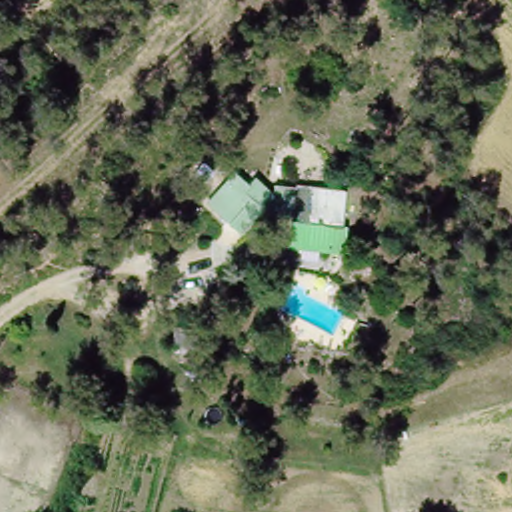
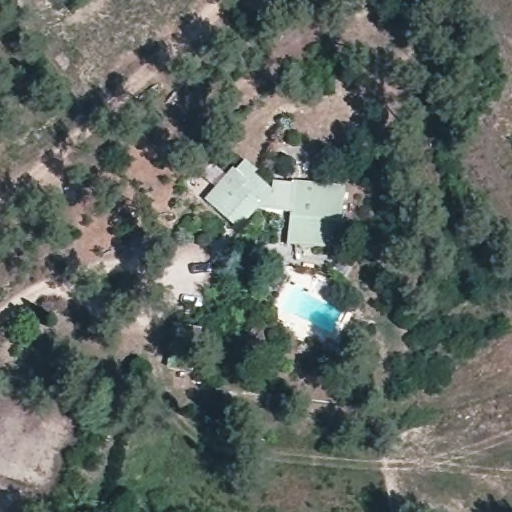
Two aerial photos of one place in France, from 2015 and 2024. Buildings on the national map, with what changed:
unchanged [(224,162),(234,171),(242,167),(258,185),(265,176),(293,184),(293,181),(341,194),(331,229),(312,225),(307,244),(278,234),(285,210),(247,199),(225,217),(209,201),(195,186),(224,162)]

